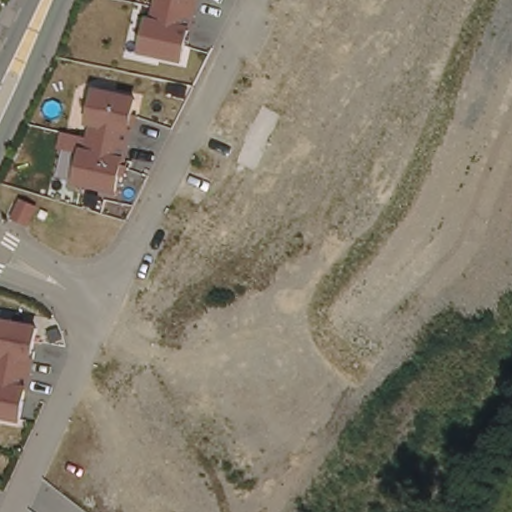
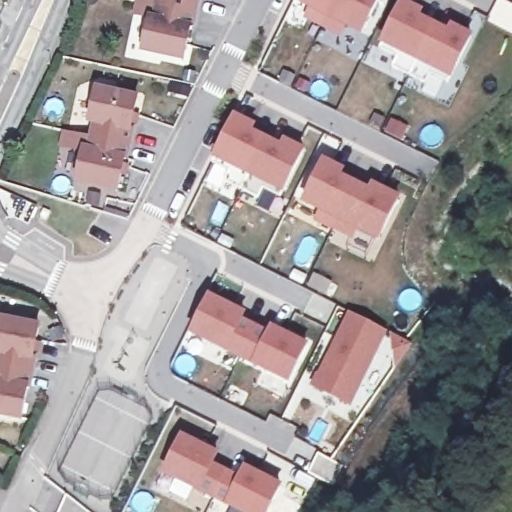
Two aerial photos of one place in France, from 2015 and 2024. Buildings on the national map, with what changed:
unchanged [(192,34),(184,65),(145,57),(152,15),(157,16),(159,0),(204,0),(198,35),(192,34)]
new [(310,9),(294,1),(294,0),(382,0),(364,37),(347,28),(342,37),(305,19),(310,9)]
new [(434,70),(427,84),(397,67),(401,58),(383,49),(385,44),(405,1),(427,12),(424,17),(450,31),(454,25),(475,37),(454,80),(434,70)]
unchanged [(140,97),(133,132),(137,133),(130,169),(126,168),(122,194),(78,186),(85,144),(92,145),(95,122),(90,122),(97,90),(140,97)]
new [(237,116),(257,126),(255,132),(283,146),(287,139),(307,151),(286,195),(265,185),(259,199),(228,183),(235,170),(215,159),(237,116)]
new [(315,222),(320,212),(305,203),(326,160),(347,171),(345,177),(372,190),(375,184),(403,198),(381,242),(360,231),(355,241),(315,222)]
new [(310,346),(290,385),(192,334),(212,295),(249,314),(246,320),(271,333),(274,327),(310,346)]
new [(312,387),(351,313),(388,332),(352,406),(312,387)]
unchanged [(34,352),(38,352),(33,394),(27,393),(23,424),(0,419),(0,319),(38,323),(34,352)]
new [(216,468),(232,476),(220,500),(172,476),(188,442),(221,458),(216,468)]
new [(247,483),(252,473),(285,490),(274,512),(244,512),(220,500),(232,476),(247,483)]

